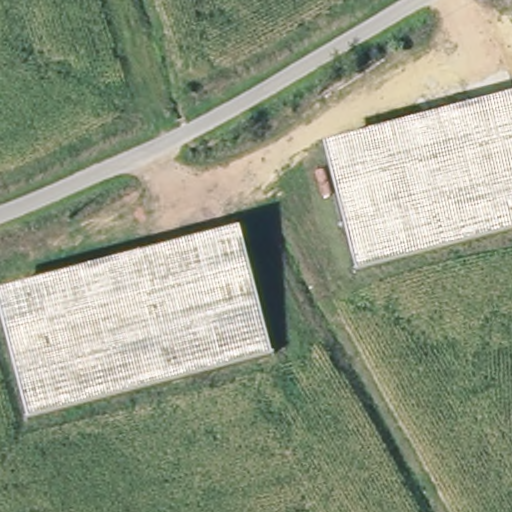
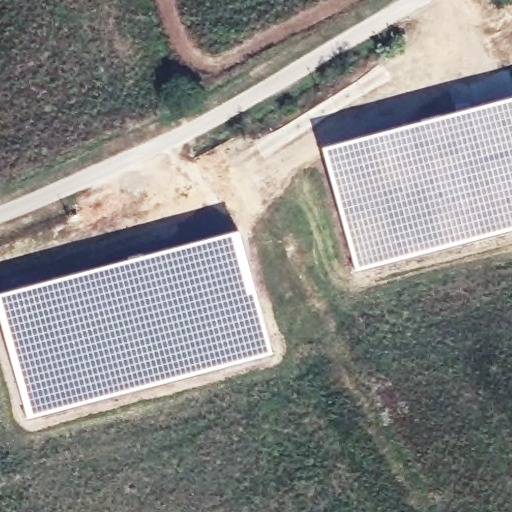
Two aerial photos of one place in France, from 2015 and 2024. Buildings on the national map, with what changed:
unchanged [(512,96),(512,230),(358,273),(326,146),(512,96)]
unchanged [(0,305),(0,293),(242,230),(275,353),(30,419),(0,305)]

